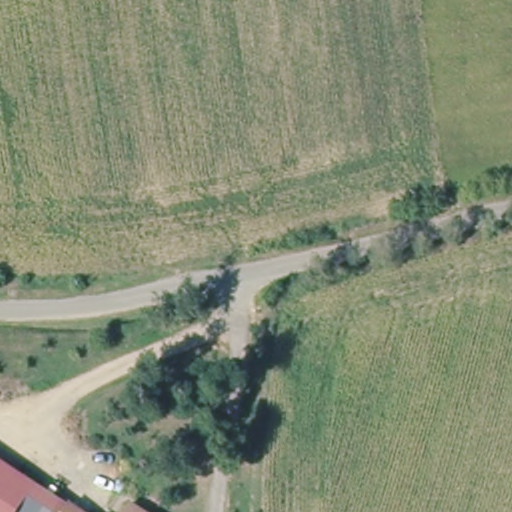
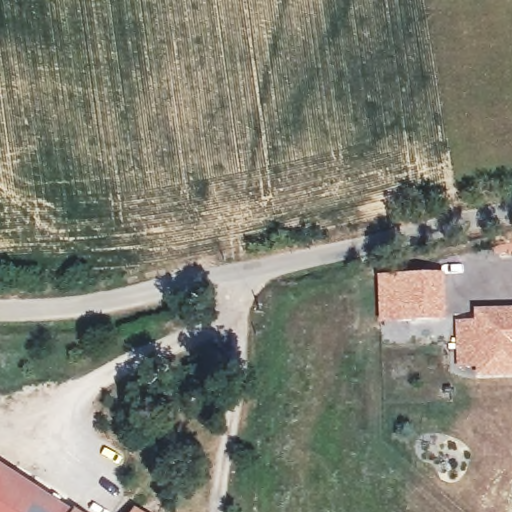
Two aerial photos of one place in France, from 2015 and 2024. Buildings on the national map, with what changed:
new [(444,273),(444,318),(377,321),(376,274),(444,273)]
new [(499,368),(475,368),(474,359),(455,360),(454,320),(473,319),(472,309),(498,308),(512,308),(512,368),(499,368)]
new [(25,508),(29,512),(0,512),(0,464),(40,492),(25,508)]
demolished [(25,512),(0,512),(0,465),(36,488),(25,512)]
new [(133,507),(140,512),(130,512),(133,507)]
demolished [(72,508),(78,512),(69,512),(72,508)]
demolished [(135,510),(139,512),(133,512),(135,510)]

